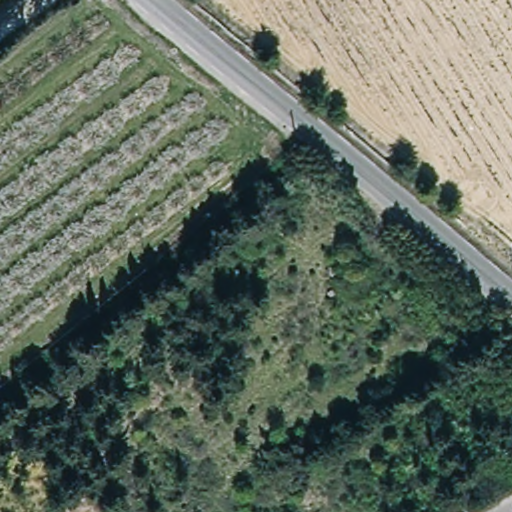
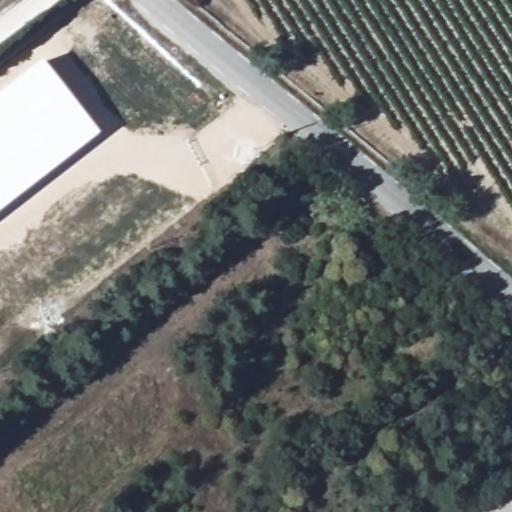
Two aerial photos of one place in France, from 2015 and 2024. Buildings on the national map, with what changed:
new [(0,212),(0,95),(45,60),(101,134),(0,212)]

